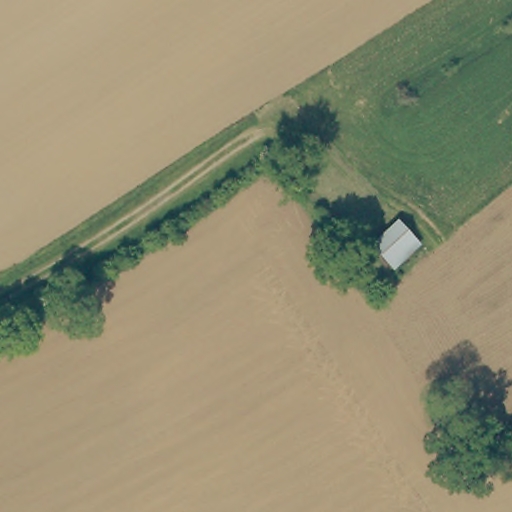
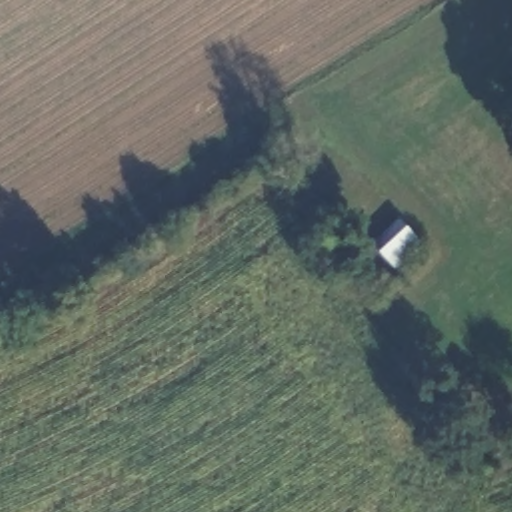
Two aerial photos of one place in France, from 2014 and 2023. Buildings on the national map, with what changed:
unchanged [(421,244),(393,268),(372,245),(399,220),(421,244)]

